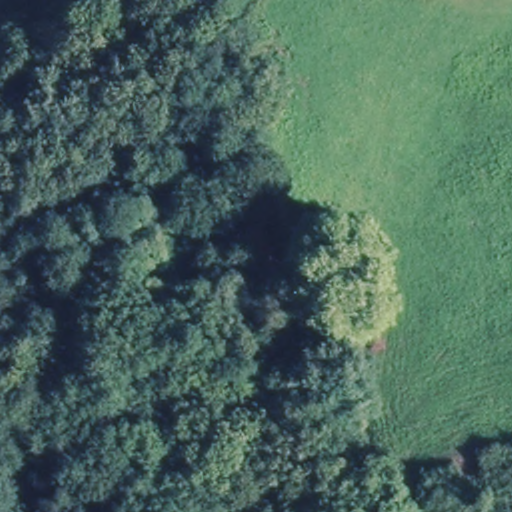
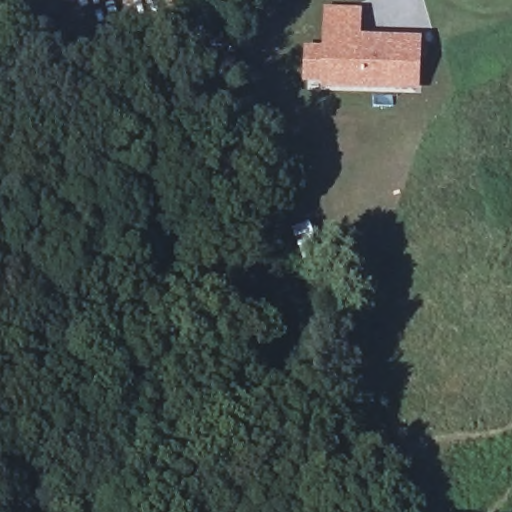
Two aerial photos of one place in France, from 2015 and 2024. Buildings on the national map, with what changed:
new [(302,46),(321,46),(322,8),(362,9),(362,35),(422,38),(420,93),(343,89),(302,83),(302,46)]

